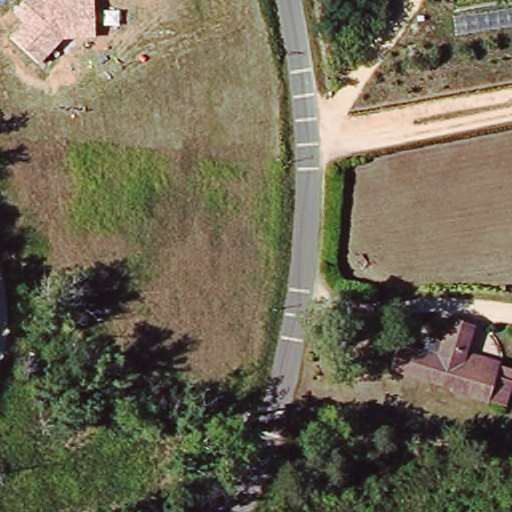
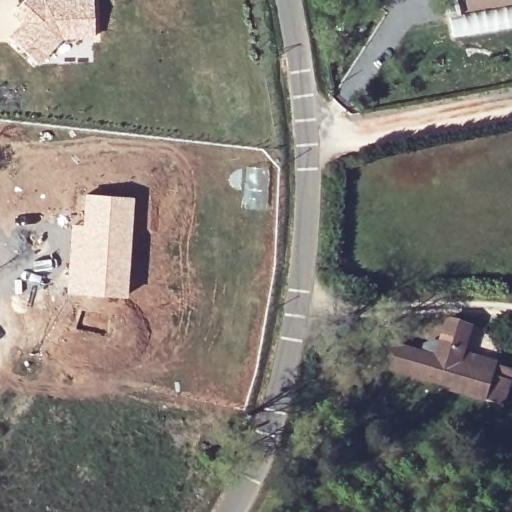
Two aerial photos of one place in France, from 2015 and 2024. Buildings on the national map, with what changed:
unchanged [(63,38),(40,62),(8,35),(20,22),(12,14),(25,0),(92,0),(93,37),(63,38)]
new [(70,224),(81,224),(83,192),(133,196),(126,297),(65,293),(70,224)]
unchanged [(391,371),(399,348),(437,361),(449,320),(472,327),(460,367),(512,382),(512,384),(504,408),(451,392),(452,388),(391,371)]

